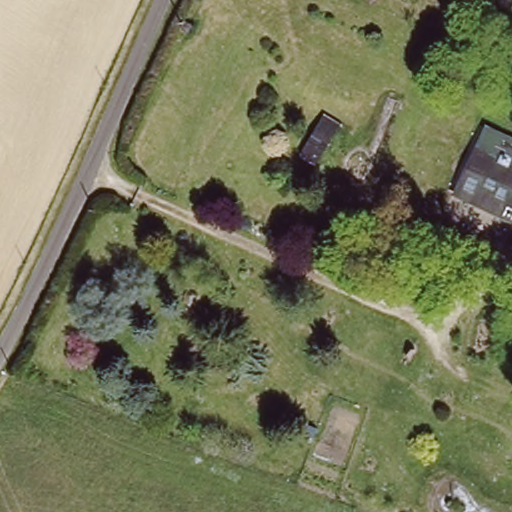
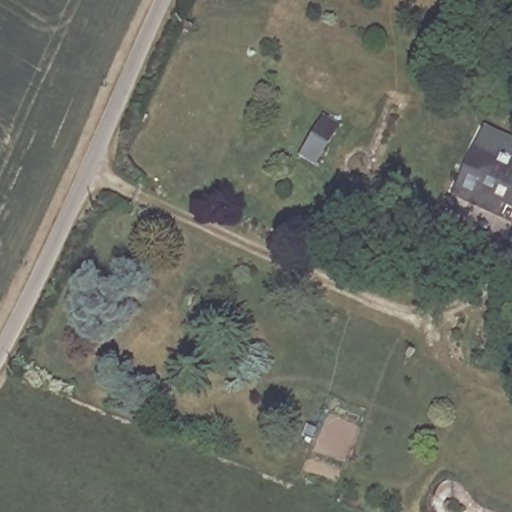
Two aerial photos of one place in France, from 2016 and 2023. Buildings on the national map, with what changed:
unchanged [(473,164),(488,137),(512,150),(512,186),(473,164)]
unchanged [(512,186),(512,212),(509,217),(460,188),(473,164),(512,186)]

